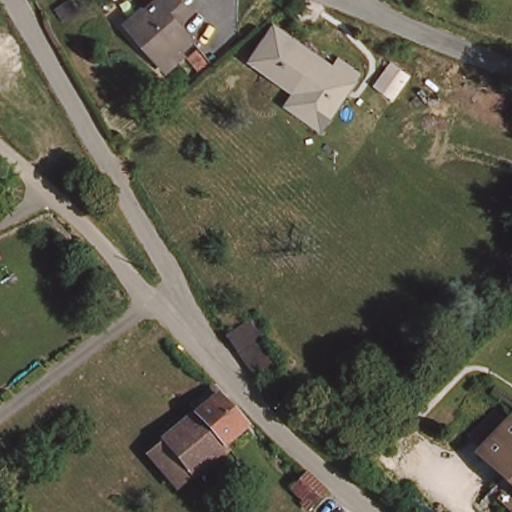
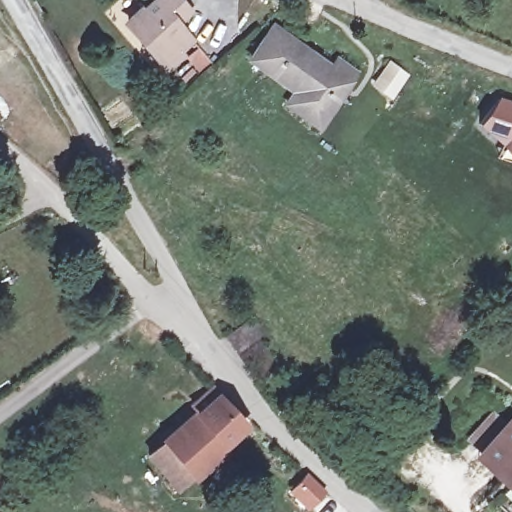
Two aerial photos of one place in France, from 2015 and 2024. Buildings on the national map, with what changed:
unchanged [(171,0),(181,13),(170,24),(185,41),(157,66),(140,45),(136,49),(119,26),(149,0),(171,0)]
unchanged [(292,91),(250,64),(275,28),(337,69),(345,58),(362,71),(323,131),(300,115),(285,105),(292,91)]
new [(512,101),(512,150),(505,148),(478,125),(501,97),(512,101)]
unchanged [(0,122),(0,109),(6,116),(0,122)]
unchanged [(233,325),(256,305),(271,321),(262,328),(286,354),(267,372),(245,342),(233,325)]
unchanged [(170,443),(198,416),(192,410),(207,395),(215,402),(222,395),(250,425),(209,465),(200,474),(170,443)]
unchanged [(512,425),(512,486),(481,457),(512,425)]
unchanged [(177,492),(149,463),(170,443),(200,474),(177,492)]
unchanged [(310,472),(327,487),(311,505),(295,490),(310,472)]

